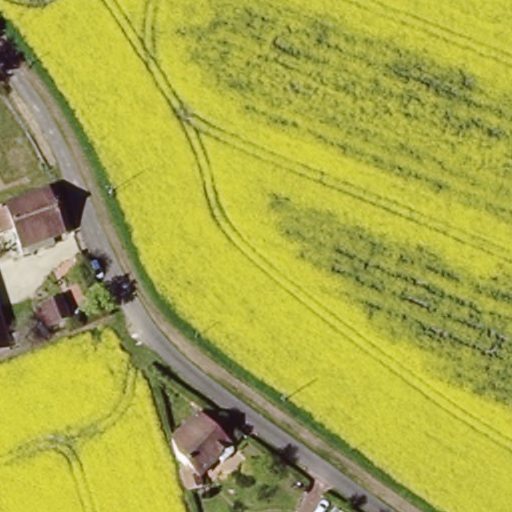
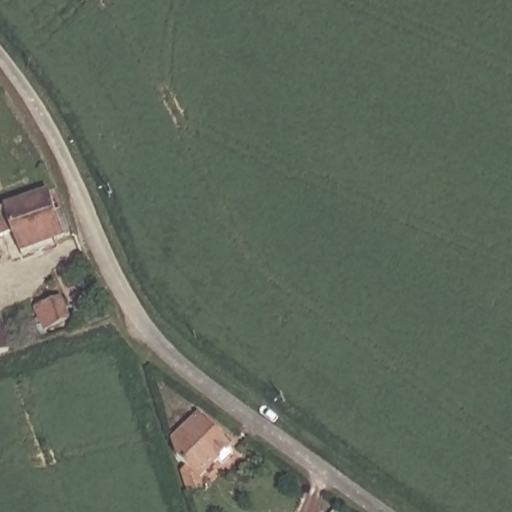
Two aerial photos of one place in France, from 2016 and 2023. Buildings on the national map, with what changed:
unchanged [(60,216),(71,213),(75,226),(65,230),(67,234),(51,239),(53,245),(24,255),(15,230),(0,235),(0,209),(52,190),(60,216)]
unchanged [(61,292),(70,315),(46,323),(37,301),(61,292)]
unchanged [(0,353),(0,307),(15,348),(0,353)]
unchanged [(204,413),(235,446),(202,480),(205,490),(190,492),(185,473),(189,471),(184,459),(180,460),(175,441),(204,413)]

